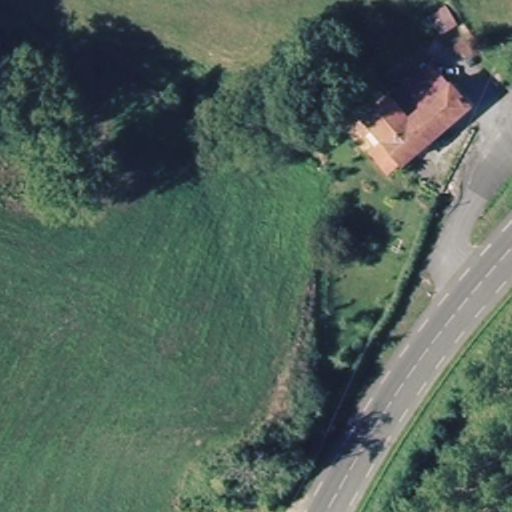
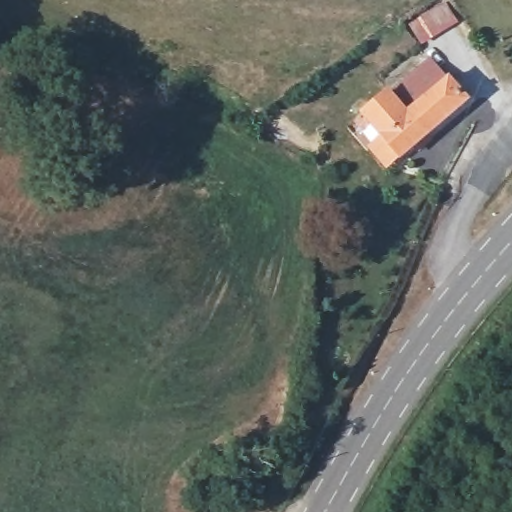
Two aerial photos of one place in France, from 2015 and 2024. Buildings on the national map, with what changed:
unchanged [(404,156),(376,125),(364,111),(389,89),(431,54),(449,76),(471,101),(404,156)]

